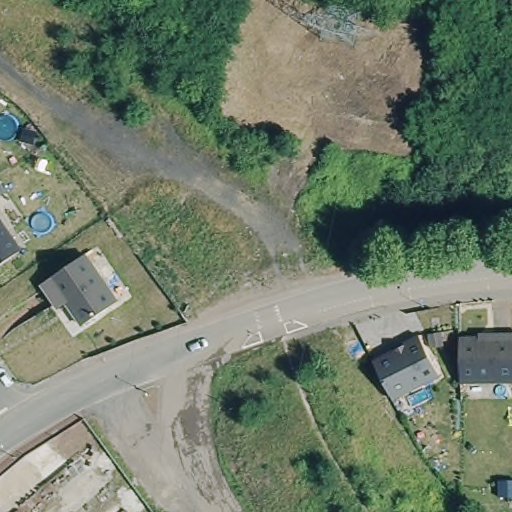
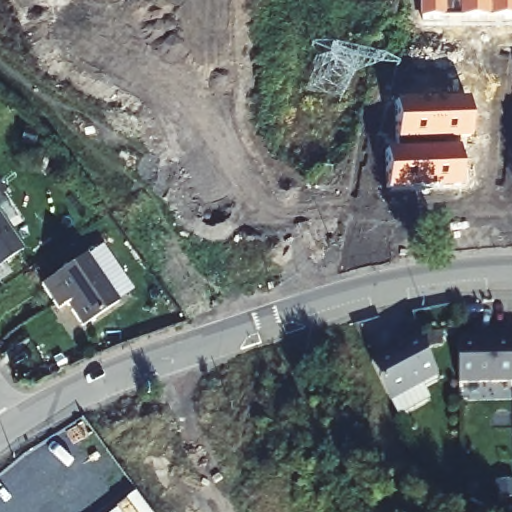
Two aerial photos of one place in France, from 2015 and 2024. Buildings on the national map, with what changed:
new [(420,0),(512,0),(512,21),(420,21),(420,0)]
new [(394,100),(466,98),(467,138),(455,139),(457,146),(396,148),(394,100)]
new [(385,148),(396,148),(457,146),(460,186),(386,191),(385,148)]
unchanged [(20,250),(0,264),(0,221),(20,250)]
unchanged [(81,250),(115,299),(80,325),(64,302),(53,309),(35,280),(81,250)]
unchanged [(504,334),(512,334),(512,381),(458,381),(458,342),(458,339),(504,338),(504,334)]
unchanged [(405,345),(403,343),(418,335),(438,375),(392,399),(372,362),(405,345)]
new [(437,376),(439,381),(426,387),(429,394),(397,410),(392,399),(437,376)]

